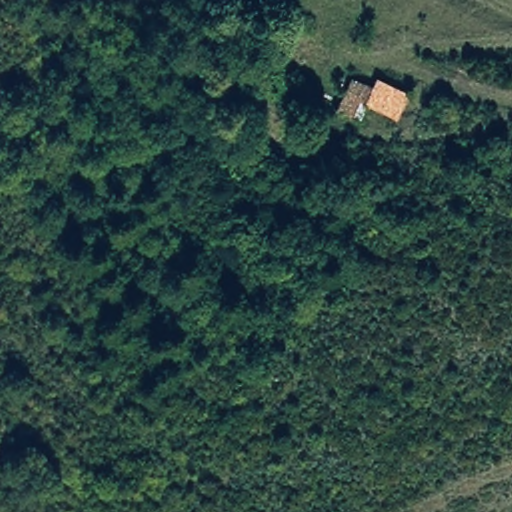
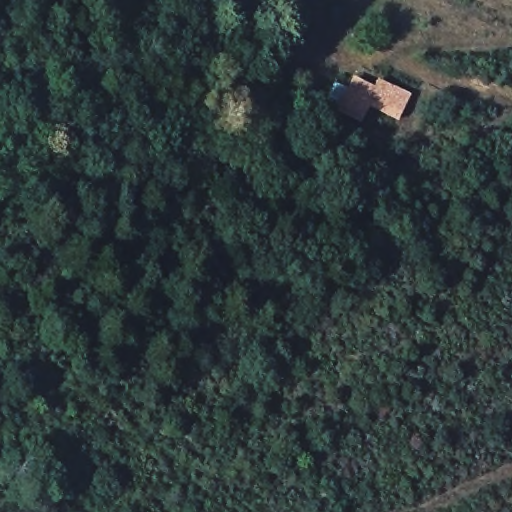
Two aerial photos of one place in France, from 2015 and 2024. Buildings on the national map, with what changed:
unchanged [(411,94),(398,120),(368,107),(360,123),(337,112),(351,79),(374,89),(378,79),(411,94)]

